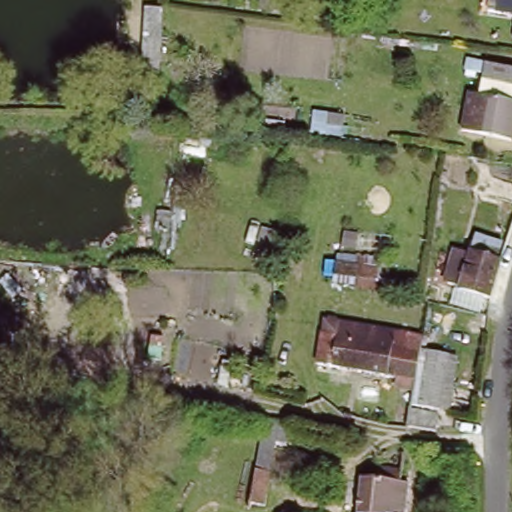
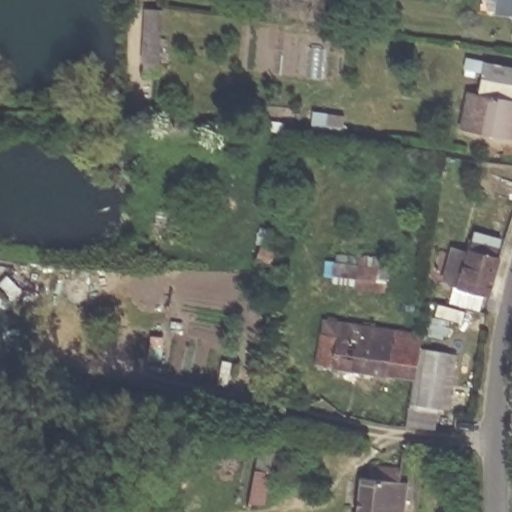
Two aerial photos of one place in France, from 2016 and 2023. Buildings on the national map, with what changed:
unchanged [(503,0),(512,0),(512,12),(501,11),(503,0)]
unchanged [(166,43),(165,68),(145,67),(145,18),(167,18),(166,43)]
unchanged [(512,81),(487,77),(490,64),(512,68),(512,81)]
unchanged [(512,141),(475,135),(483,87),(512,91),(512,141)]
unchanged [(343,150),(345,132),(364,134),(361,153),(343,150)]
unchanged [(505,256),(498,296),(468,291),(475,251),(505,256)]
unchanged [(385,281),(360,279),(360,284),(340,282),(341,267),(355,267),(386,270),(385,281)]
unchanged [(400,381),(327,365),(330,352),(321,350),(325,332),(343,336),(345,324),(396,332),(394,347),(425,352),(420,386),(400,381)]
unchanged [(450,351),(442,406),(425,403),(433,348),(450,351)]
unchanged [(414,432),(417,411),(442,415),(440,433),(414,432)]
unchanged [(271,418),(293,422),(290,439),(283,438),(277,472),(261,469),(271,418)]
unchanged [(404,483),(415,485),(411,512),(359,512),(363,479),(375,481),(378,464),(386,465),(406,468),(404,483)]

